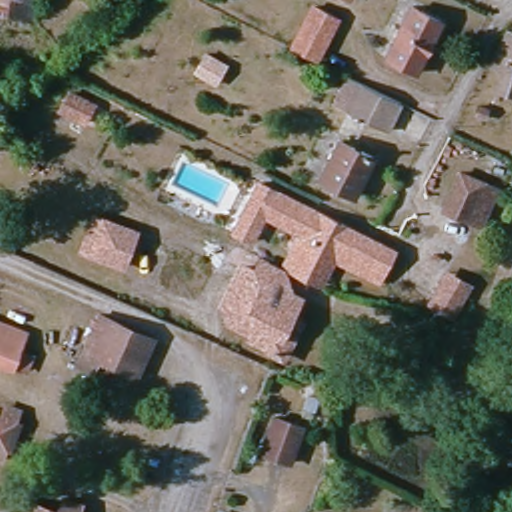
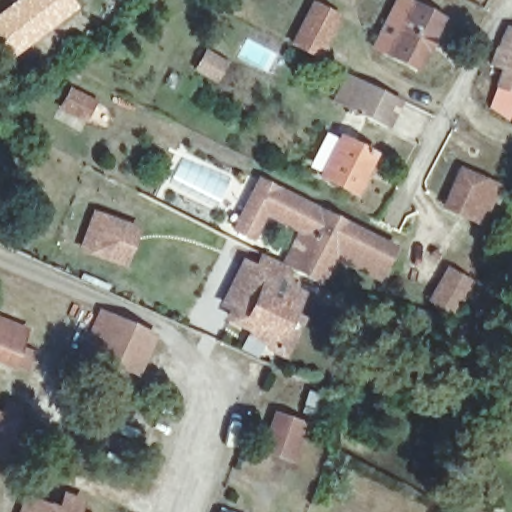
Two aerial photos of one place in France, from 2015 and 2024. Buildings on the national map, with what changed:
new [(74,0),(79,7),(6,61),(0,52),(0,11),(14,0),(74,0)]
demolished [(20,12),(22,0),(38,0),(35,16),(20,12)]
unchanged [(318,53),(305,46),(293,40),(314,1),(316,1),(339,14),(318,53)]
unchanged [(443,16),(418,66),(389,51),(415,2),(443,16)]
unchanged [(502,44),(510,37),(512,38),(512,90),(505,88),(510,71),(494,64),(502,44)]
unchanged [(397,134),(359,114),(354,111),(344,106),(358,79),(373,86),(411,106),(397,134)]
unchanged [(96,130),(71,116),(81,89),(110,104),(96,130)]
unchanged [(373,155),(355,193),(322,176),(341,139),(373,155)]
unchanged [(445,212),(459,170),(503,187),(491,230),(445,212)]
unchanged [(273,188),(249,235),(233,226),(256,180),(273,188)]
unchanged [(340,257),(327,280),(320,276),(288,259),(315,205),(396,246),(386,266),(380,278),(340,257)]
unchanged [(122,267),(91,252),(81,248),(96,215),(106,220),(137,234),(122,267)]
unchanged [(238,310),(242,301),(232,296),(249,258),(265,266),(270,257),(289,266),(281,282),(289,280),(301,286),(285,321),(295,326),(286,343),(277,339),(273,337),(270,329),(269,326),(238,310)]
unchanged [(471,324),(441,307),(458,271),(488,286),(471,324)]
unchanged [(145,323),(128,372),(76,354),(95,305),(145,323)]
unchanged [(28,331),(23,347),(0,338),(0,313),(24,321),(22,329),(28,331)]
unchanged [(0,394),(1,392),(18,399),(0,448),(0,394)]
unchanged [(306,427),(294,462),(265,451),(277,417),(306,427)]
unchanged [(28,495),(58,507),(64,493),(84,501),(80,512),(22,512),(28,495)]

